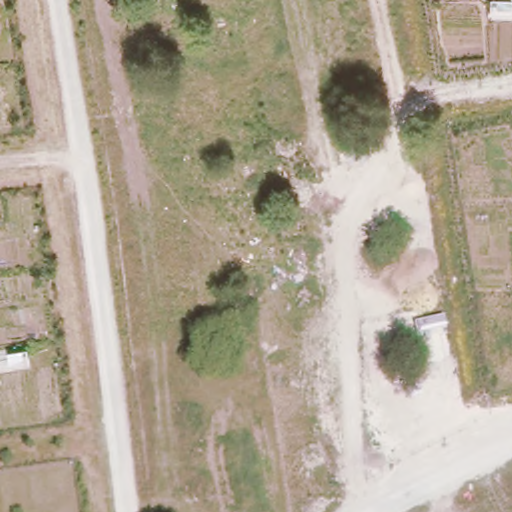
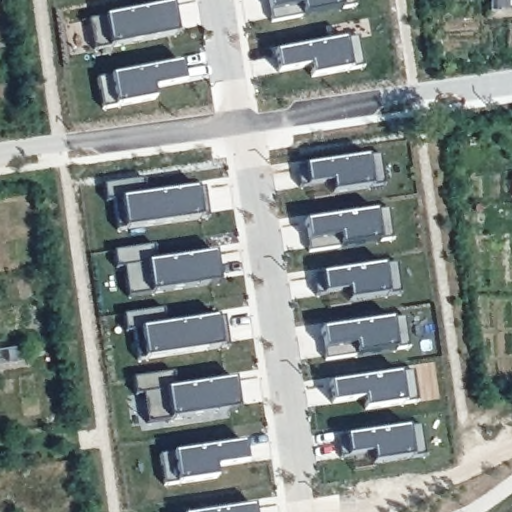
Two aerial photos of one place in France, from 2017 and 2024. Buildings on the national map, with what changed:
new [(271,20),(270,12),(268,0),(353,0),(355,6),(341,9),(303,14),(271,20)]
new [(89,20),(104,17),(172,5),(177,34),(109,47),(94,49),(89,20)]
demolished [(227,44),(204,50),(198,37),(225,29),(227,44)]
new [(310,77),(308,67),(278,71),(275,53),(358,38),(363,67),(350,69),(310,77)]
new [(98,78),(112,75),(180,63),(185,83),(153,88),(155,98),(116,105),(104,107),(98,78)]
demolished [(20,125),(1,128),(0,126),(0,105),(16,102),(20,125)]
new [(332,182),(307,185),(300,185),(298,166),(305,166),(369,158),(380,155),(384,185),(372,188),(333,193),(332,182)]
demolished [(296,198),(277,199),(273,175),(296,173),(296,198)]
new [(113,198),(106,199),(105,183),(145,178),(147,194),(198,187),(204,185),(209,216),(201,217),(126,227),(117,229),(113,198)]
new [(308,242),(306,221),(376,212),(388,210),(391,239),(380,242),(341,247),(309,251),(308,242)]
new [(125,265),(118,266),(116,249),(153,244),(156,261),(215,253),(220,283),(152,292),(128,295),(125,265)]
new [(313,276),(321,274),(384,266),(396,263),(400,293),(387,296),(348,301),(347,291),(323,294),(316,295),(313,276)]
new [(134,329),(127,329),(125,313),(163,308),(166,324),(217,318),(224,316),(229,346),(220,347),(145,358),(138,359),(134,329)]
new [(325,349),(322,329),(391,320),(405,318),(408,347),(395,350),(357,355),(325,360),(325,349)]
demolished [(321,382),(300,382),(295,346),(317,345),(321,382)]
demolished [(386,361),(388,386),(376,386),(373,360),(386,361)]
new [(144,392),(136,394),(134,377),(173,372),(176,388),(234,380),(239,410),(170,420),(148,423),(144,392)]
new [(330,383),(399,373),(412,372),(416,402),(404,404),(364,409),(363,399),(331,403),(330,383)]
new [(336,437),(345,436),(408,429),(420,427),(424,456),(412,458),(373,463),(372,453),(348,457),(340,458),(336,437)]
new [(161,454),(174,453),(243,444),(246,464),(216,468),(217,478),(178,483),(165,485),(161,454)]
new [(253,512),(221,512),(253,507),(253,512)]

